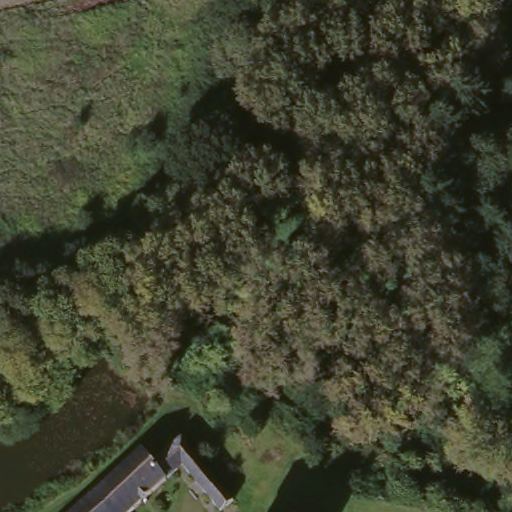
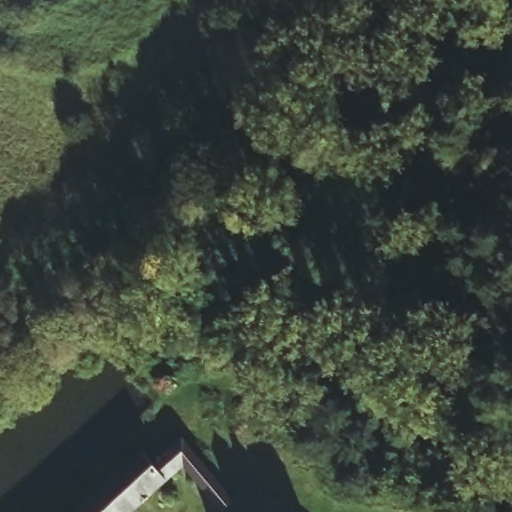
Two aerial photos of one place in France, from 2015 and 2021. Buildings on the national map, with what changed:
unchanged [(151,453),(180,430),(236,496),(223,507),(185,462),(129,512),(70,512),(144,448),(151,453)]

